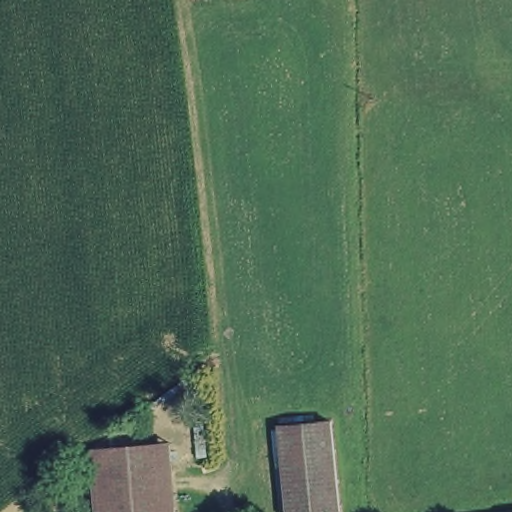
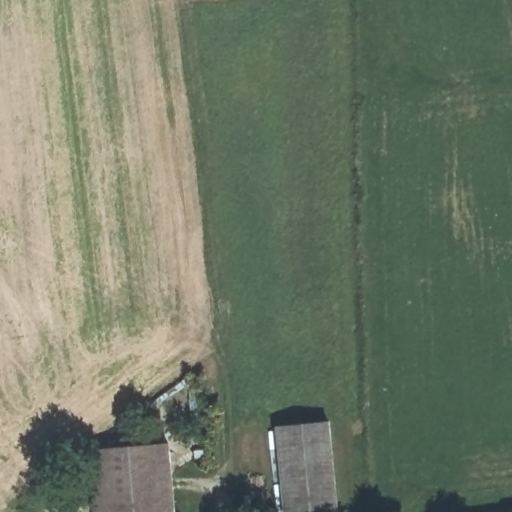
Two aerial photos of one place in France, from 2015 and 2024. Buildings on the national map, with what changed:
unchanged [(337,511),(323,512),(282,512),(275,426),(331,422),(337,511)]
unchanged [(178,443),(184,512),(96,512),(91,450),(178,443)]

